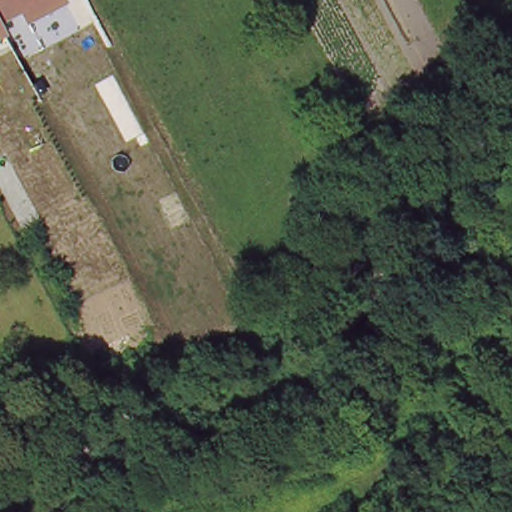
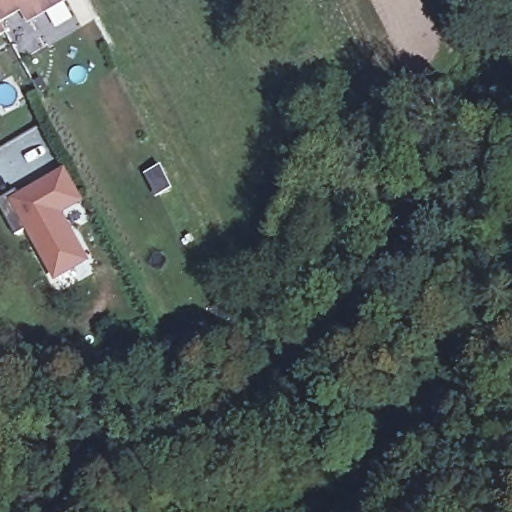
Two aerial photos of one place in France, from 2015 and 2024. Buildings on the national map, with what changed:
unchanged [(28,25),(22,15),(4,24),(10,36),(0,41),(0,0),(68,0),(70,4),(28,25)]
new [(15,232),(0,205),(0,195),(15,187),(19,194),(65,168),(81,198),(60,208),(87,257),(56,275),(28,225),(15,232)]

